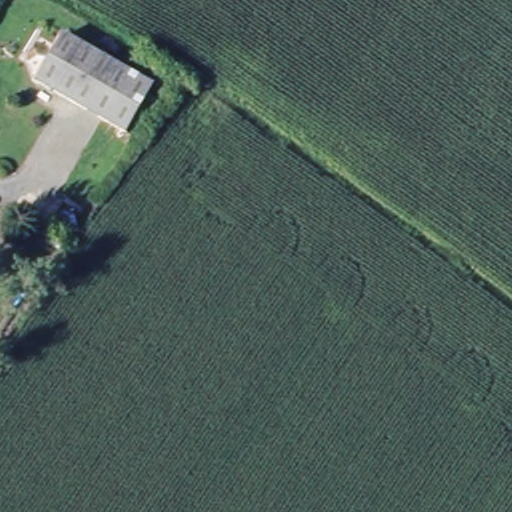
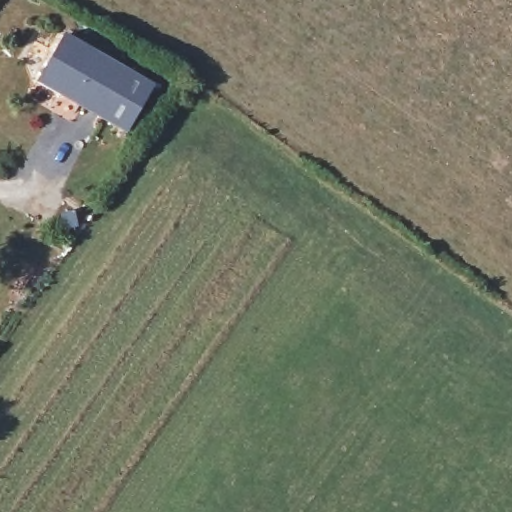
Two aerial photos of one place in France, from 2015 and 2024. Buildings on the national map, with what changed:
unchanged [(128,133),(39,89),(65,38),(153,85),(128,133)]

